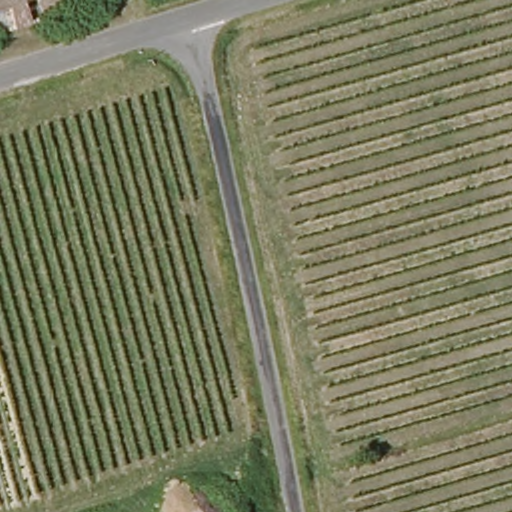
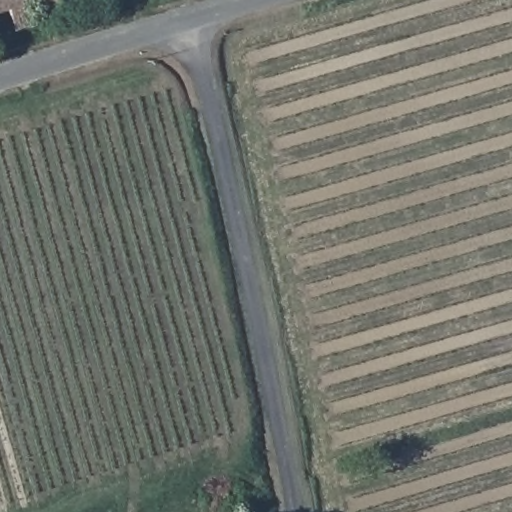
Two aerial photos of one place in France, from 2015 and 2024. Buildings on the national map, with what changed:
unchanged [(15,28),(9,8),(0,11),(0,0),(65,0),(69,13),(15,28)]

